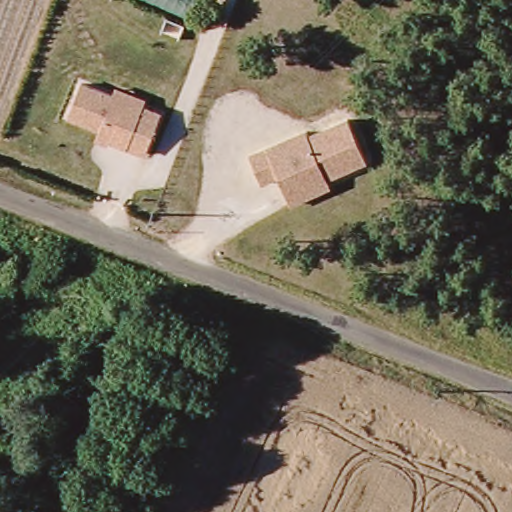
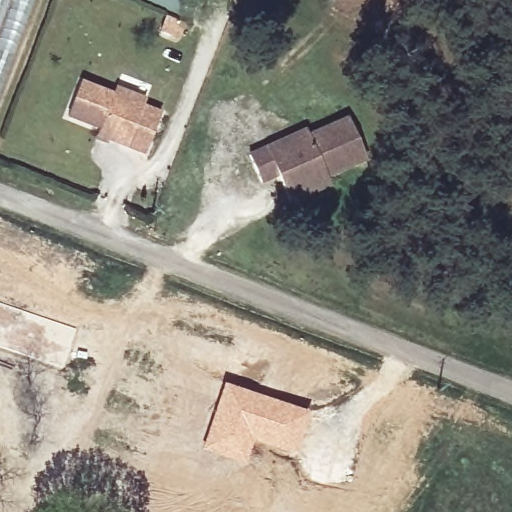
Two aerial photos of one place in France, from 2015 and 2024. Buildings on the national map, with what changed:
new [(0,98),(0,0),(37,0),(0,98)]
unchanged [(190,22),(136,0),(198,0),(190,22)]
unchanged [(114,90),(117,84),(147,96),(144,104),(162,110),(147,154),(112,142),(110,147),(95,141),(99,130),(68,117),(84,79),(114,90)]
unchanged [(305,128),(308,135),(350,117),(370,159),(329,177),(333,187),(292,205),(279,177),(263,185),(250,153),(305,128)]
new [(224,382),(308,412),(293,457),(252,443),(244,464),(200,450),(224,382)]

